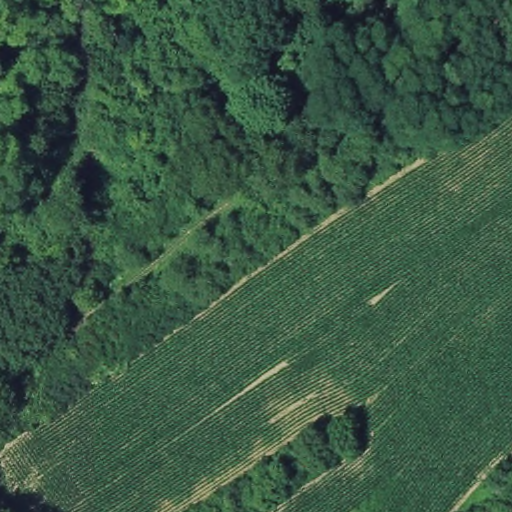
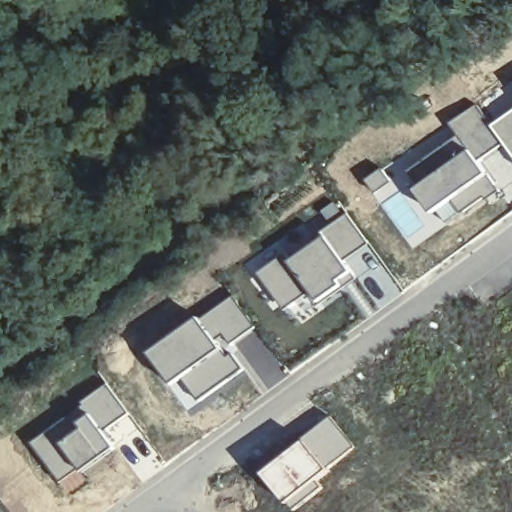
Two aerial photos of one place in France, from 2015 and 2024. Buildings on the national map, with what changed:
new [(477,105),(492,126),(504,147),(499,152),(484,164),(474,152),(471,154),(468,151),(457,136),(449,126),(477,105)]
new [(512,113),(512,165),(499,152),(504,147),(492,126),(512,113)]
new [(457,136),(468,151),(418,189),(407,171),(457,136)]
new [(468,151),(471,154),(474,152),(484,164),(494,176),(464,204),(468,209),(445,225),(418,189),(468,151)]
new [(384,169),(401,190),(382,204),(366,180),(384,169)]
new [(330,225),(321,212),(338,200),(371,244),(348,262),(325,237),(320,233),(330,225)]
new [(325,237),(348,262),(358,277),(316,310),(310,301),(286,265),(325,237)]
new [(281,258),(286,265),(310,301),(288,313),(258,275),(281,258)]
new [(234,296),(258,328),(231,348),(205,364),(176,386),(153,355),(234,296)]
new [(205,364),(231,348),(246,370),(196,405),(183,392),(180,394),(176,386),(205,364)]
new [(108,383),(132,415),(109,433),(82,404),(108,383)]
new [(82,404),(109,433),(120,447),(85,475),(83,471),(63,486),(32,444),(82,404)]
new [(333,415),(359,448),(330,473),(305,441),(303,439),(333,415)]
new [(305,441),(330,473),(289,506),(263,474),(305,441)]

